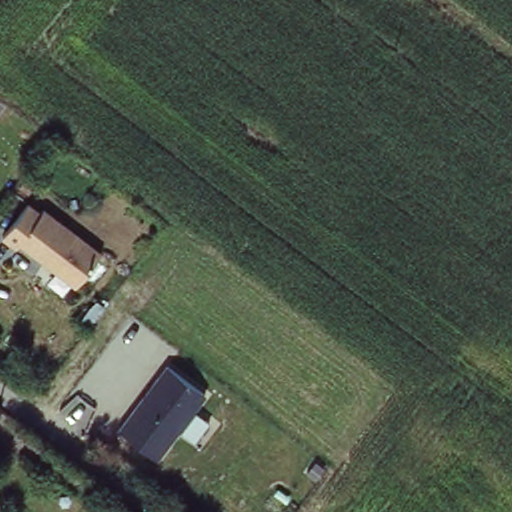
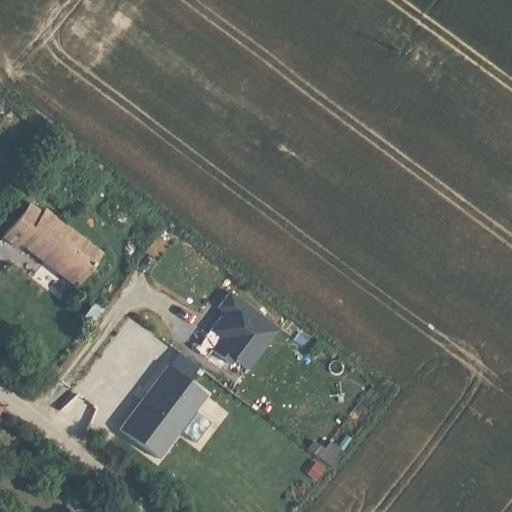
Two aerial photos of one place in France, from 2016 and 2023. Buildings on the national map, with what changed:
unchanged [(30,197),(42,207),(45,203),(101,250),(75,282),(20,236),(16,240),(3,229),(30,197)]
new [(235,361),(231,366),(210,350),(220,338),(209,331),(223,312),(216,307),(229,291),(280,331),(249,371),(235,361)]
unchanged [(166,365),(205,394),(160,455),(121,428),(166,365)]
unchanged [(4,409),(0,414),(0,406),(4,409)]

